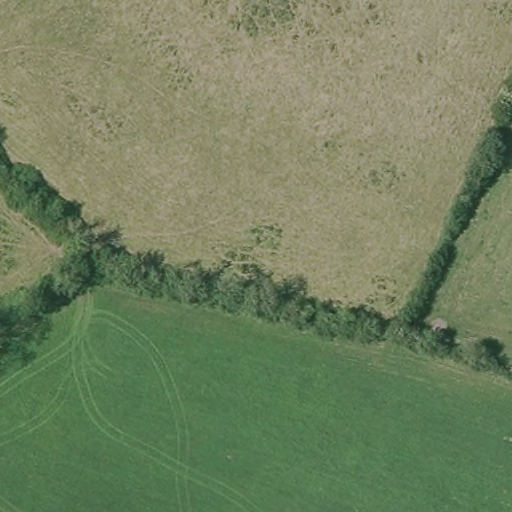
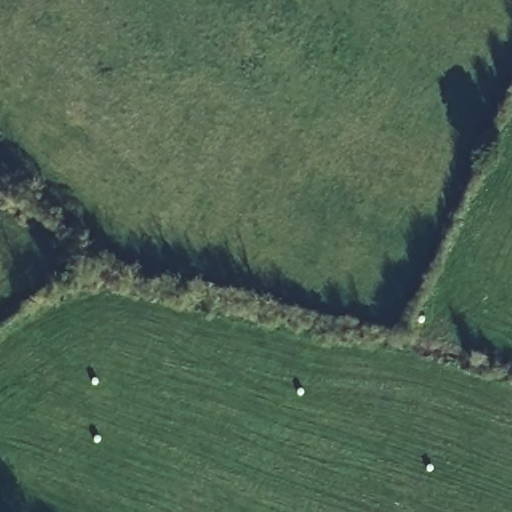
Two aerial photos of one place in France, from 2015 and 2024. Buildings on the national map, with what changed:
[]

